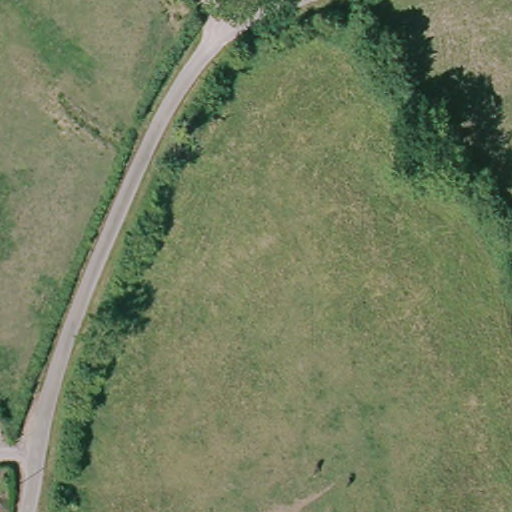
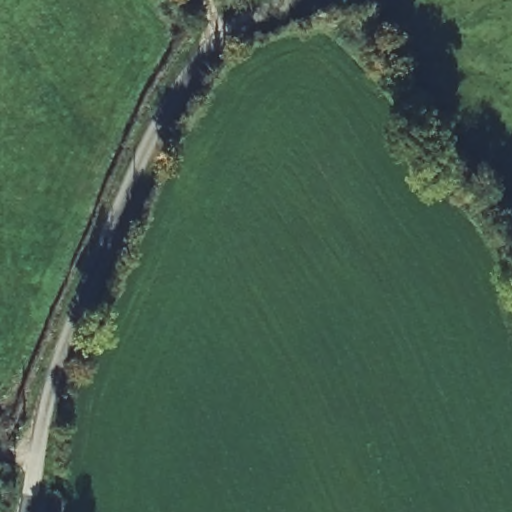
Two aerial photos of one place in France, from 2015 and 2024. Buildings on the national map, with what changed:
unchanged [(211,32),(195,56),(180,47),(197,23),(211,32)]

